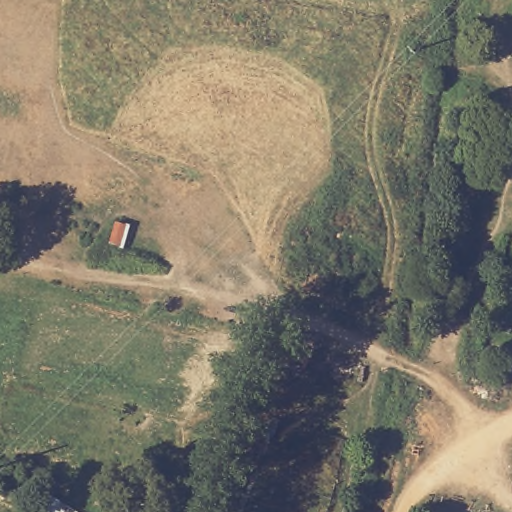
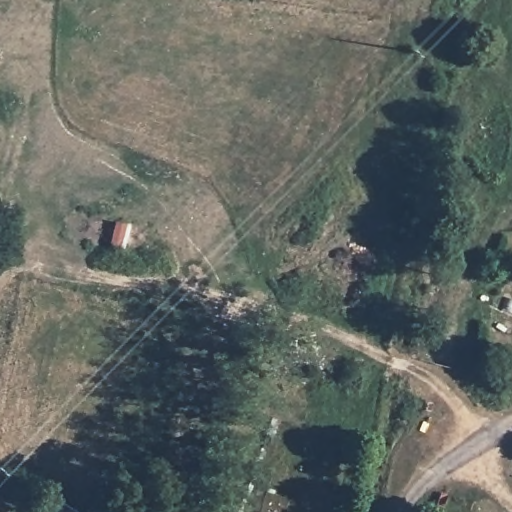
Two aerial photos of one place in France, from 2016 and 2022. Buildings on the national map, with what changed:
unchanged [(47,490),(82,512),(47,512),(37,506),(47,490)]

